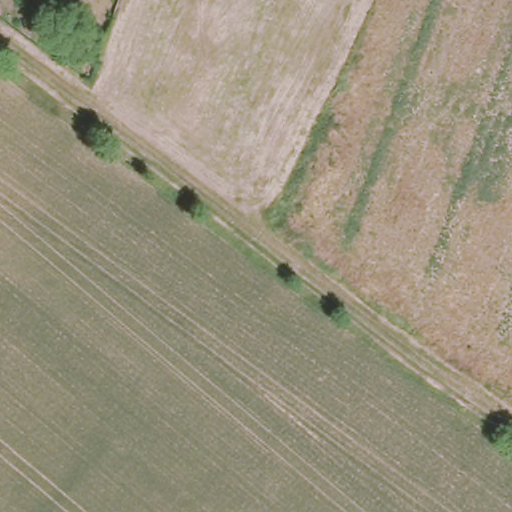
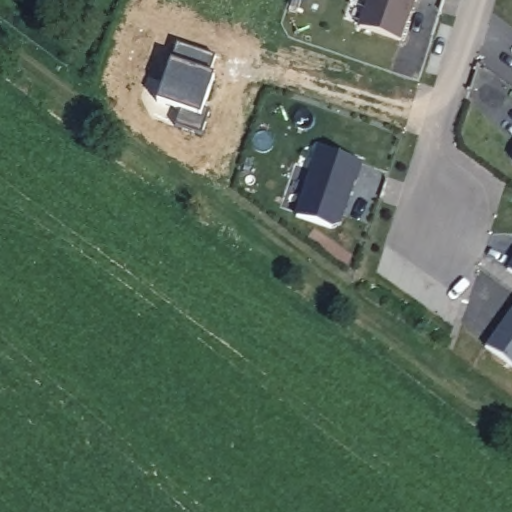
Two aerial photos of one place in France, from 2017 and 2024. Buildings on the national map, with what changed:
new [(400,40),(358,27),(368,0),(413,0),(400,40)]
new [(208,74),(215,76),(205,106),(211,110),(203,133),(176,126),(180,112),(156,102),(171,60),(177,45),(216,58),(208,74)]
new [(365,165),(344,227),(337,230),(302,218),(325,151),(365,165)]
new [(490,349),(512,319),(512,364),(490,349)]

